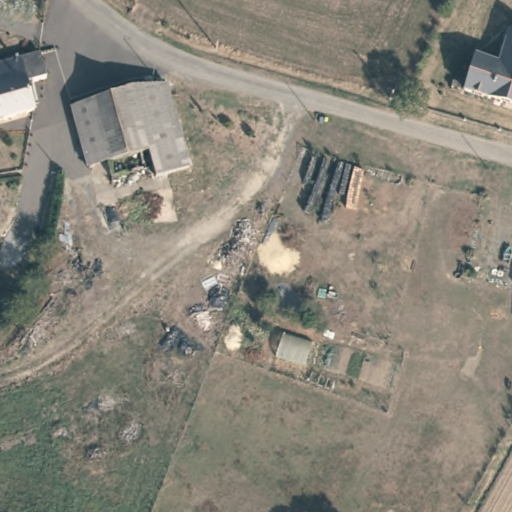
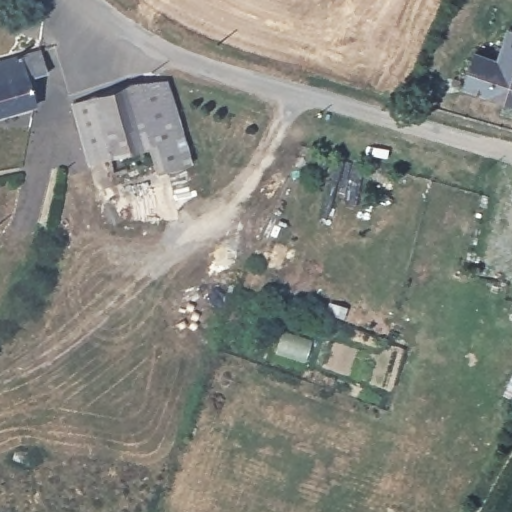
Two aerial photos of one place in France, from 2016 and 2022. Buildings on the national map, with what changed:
unchanged [(497,101),(508,66),(492,61),(504,28),(512,31),(512,106),(497,101)]
unchanged [(0,55),(39,43),(48,68),(33,72),(39,99),(36,101),(0,112),(0,55)]
unchanged [(458,88),(468,53),(492,61),(508,66),(497,101),(458,88)]
unchanged [(123,87),(159,83),(181,155),(185,168),(148,180),(143,167),(107,178),(97,148),(81,152),(69,107),(123,87)]

